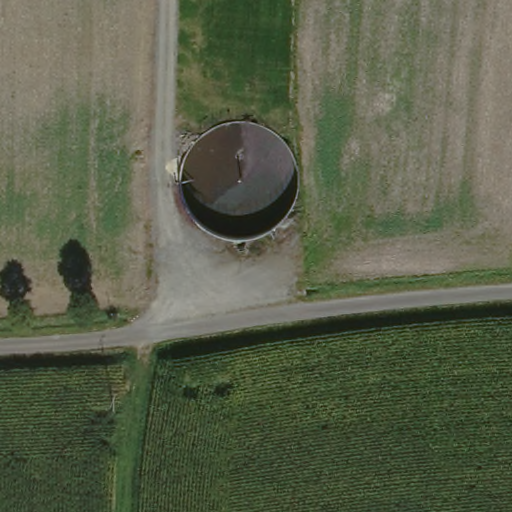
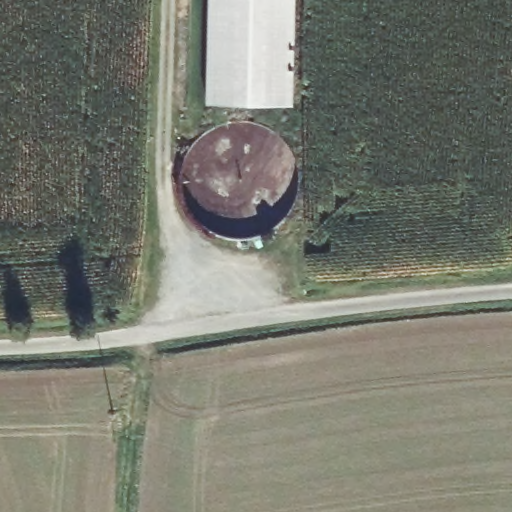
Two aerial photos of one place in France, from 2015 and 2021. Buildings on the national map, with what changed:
new [(292,106),(206,102),(208,0),(295,0),(292,106)]

